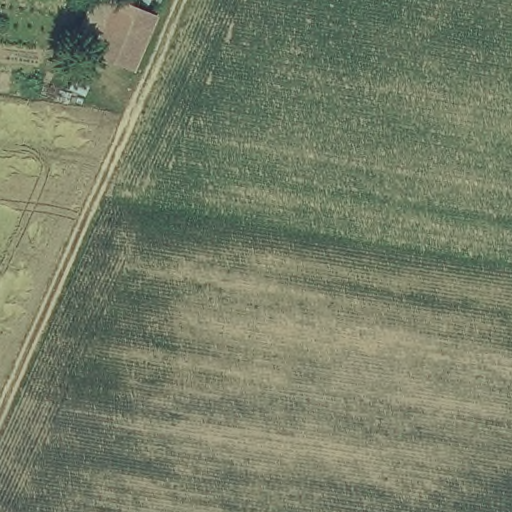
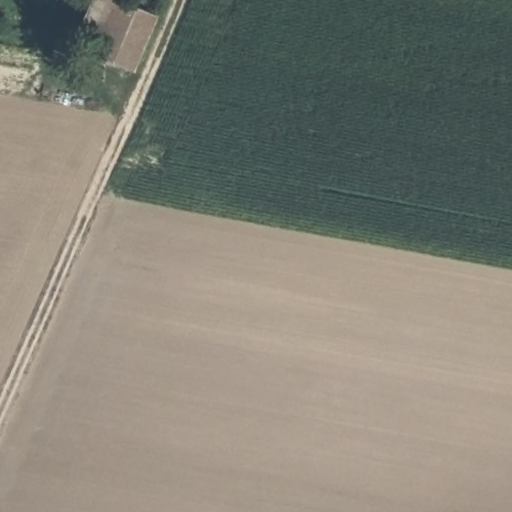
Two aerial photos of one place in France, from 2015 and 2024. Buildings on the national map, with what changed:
unchanged [(72,57),(96,0),(99,0),(155,25),(131,82),(72,57)]

